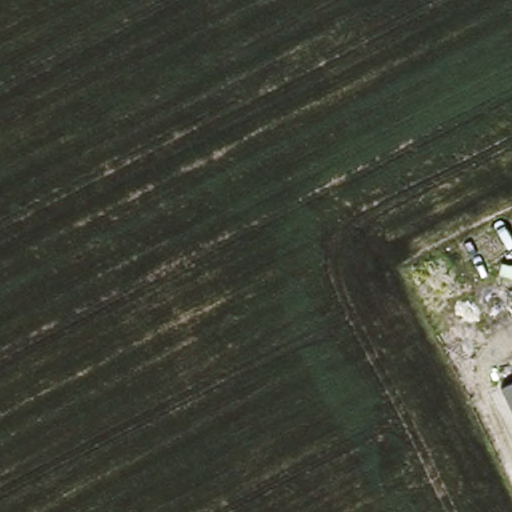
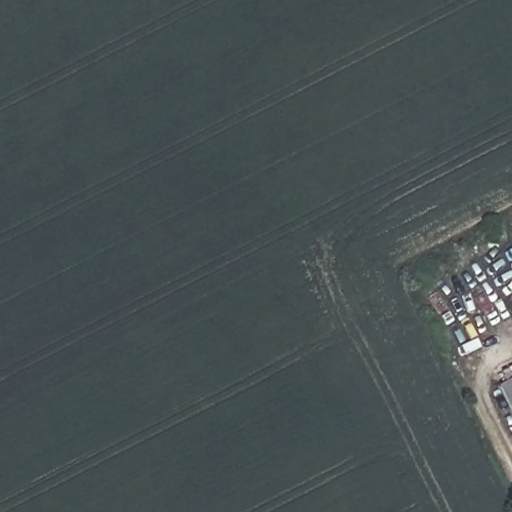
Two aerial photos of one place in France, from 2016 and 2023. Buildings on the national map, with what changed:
unchanged [(512,380),(512,412),(499,386),(512,380)]

